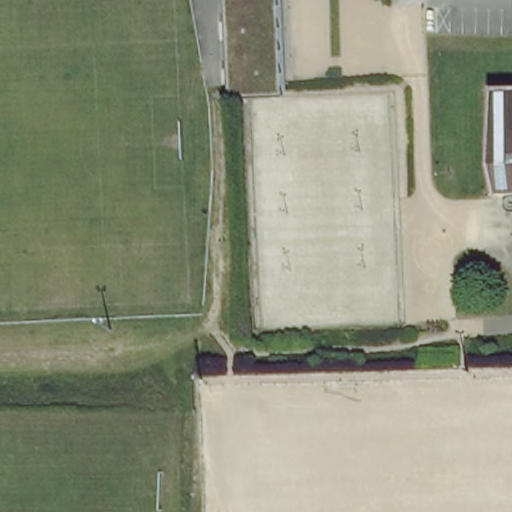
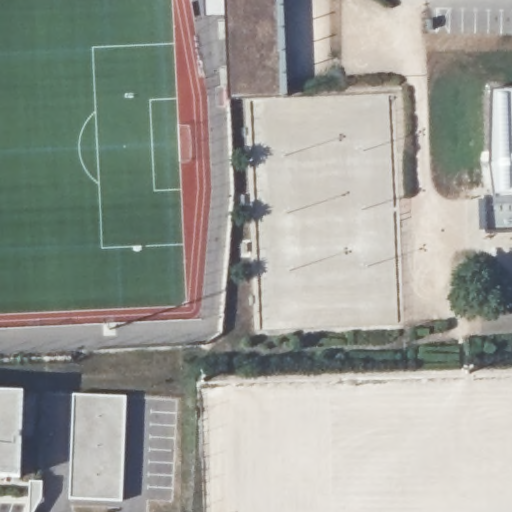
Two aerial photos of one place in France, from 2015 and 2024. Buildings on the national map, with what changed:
unchanged [(228,0),(284,0),(287,97),(232,99),(228,0)]
unchanged [(497,169),(497,88),(512,88),(512,198),(503,198),(497,169)]
new [(22,388),(19,473),(0,472),(0,387),(22,388)]
new [(126,396),(122,501),(70,499),(74,394),(126,396)]

